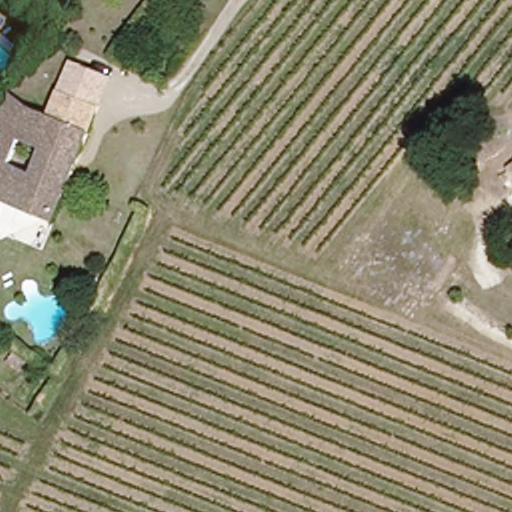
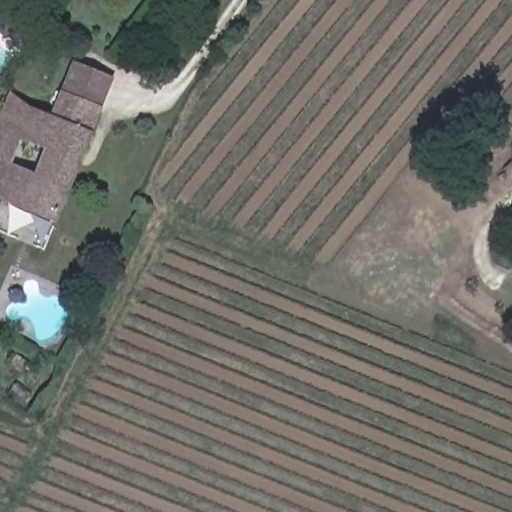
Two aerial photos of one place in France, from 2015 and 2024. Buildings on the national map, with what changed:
unchanged [(0,108),(0,93),(3,89),(10,94),(52,116),(64,92),(66,92),(88,103),(94,91),(105,98),(101,108),(77,166),(71,179),(76,182),(65,209),(60,207),(57,215),(53,224),(0,204),(0,115),(2,110),(0,108)]

